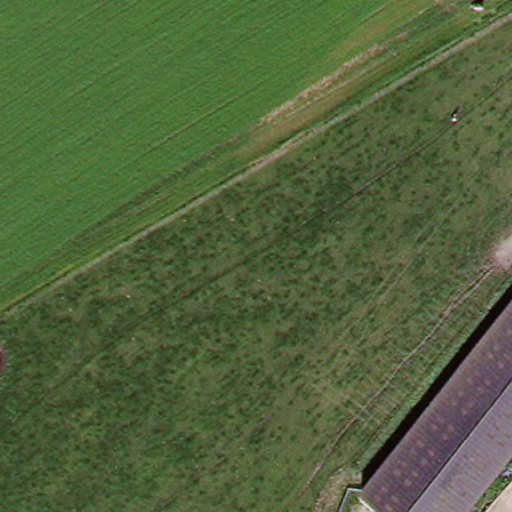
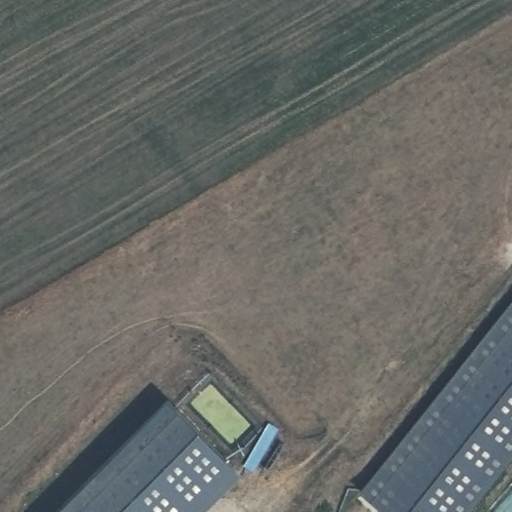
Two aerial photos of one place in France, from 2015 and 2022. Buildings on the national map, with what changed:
unchanged [(512,301),(512,448),(459,512),(369,512),(351,497),(512,301)]
new [(239,472),(200,512),(54,512),(166,400),(239,472)]

